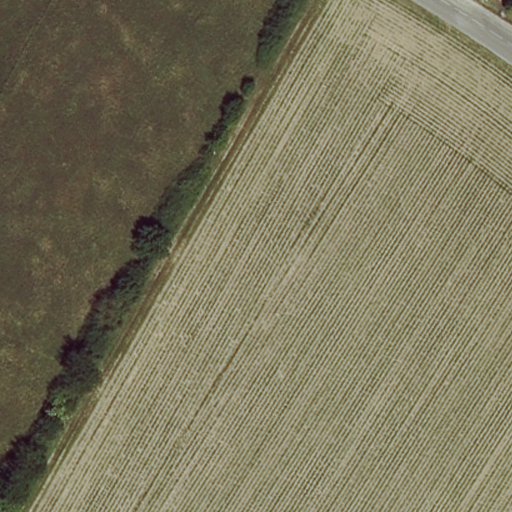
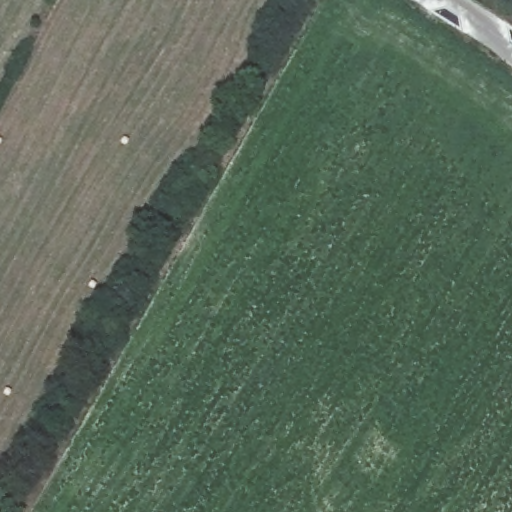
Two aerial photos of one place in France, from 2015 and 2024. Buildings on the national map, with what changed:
[]

